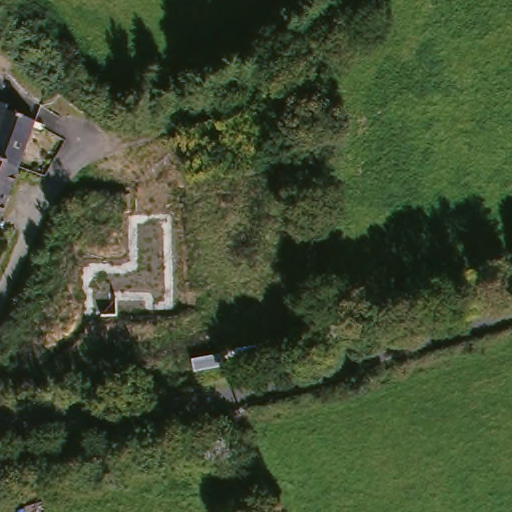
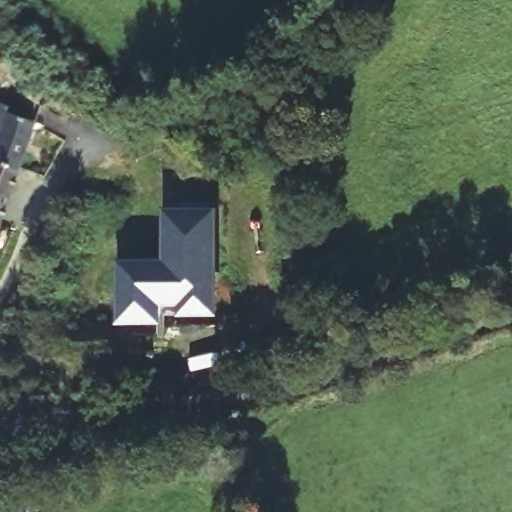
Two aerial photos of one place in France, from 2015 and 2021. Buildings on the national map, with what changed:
unchanged [(23,164),(0,157),(0,96),(13,100),(11,106),(41,117),(23,163),(23,164)]
unchanged [(0,221),(0,157),(23,164),(1,221),(0,221)]
new [(216,209),(217,316),(179,316),(179,312),(160,312),(160,325),(118,324),(116,260),(161,259),(161,208),(216,209)]

